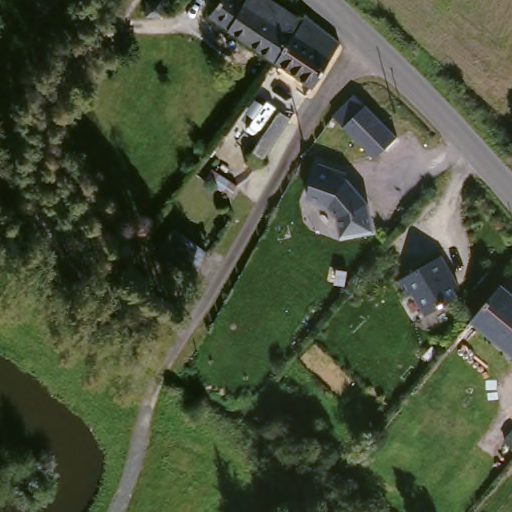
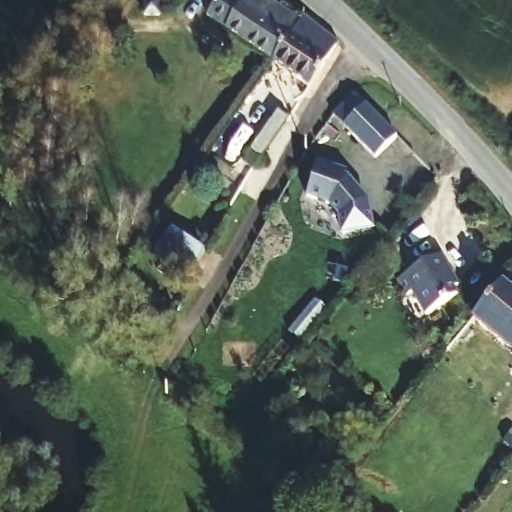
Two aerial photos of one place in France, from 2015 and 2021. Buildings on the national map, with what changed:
unchanged [(137,0),(151,0),(151,14),(137,14),(137,0)]
unchanged [(245,53),(223,38),(224,37),(204,23),(219,0),(222,0),(237,11),(245,0),(255,0),(269,9),(297,28),(270,69),(245,52),(245,53)]
unchanged [(270,69),(297,28),(301,24),(334,50),(310,91),(307,95),(270,69)]
unchanged [(366,106),(396,139),(372,161),(342,127),(366,106)]
unchanged [(240,175),(230,169),(270,108),(280,115),(240,175)]
unchanged [(228,183),(221,194),(195,177),(202,166),(228,183)]
unchanged [(347,174),(347,181),(368,206),(372,232),(338,236),(335,217),(326,207),(302,199),(313,166),(347,174)]
unchanged [(165,236),(197,259),(180,284),(147,260),(165,236)]
unchanged [(440,255),(458,285),(452,289),(457,296),(425,314),(412,291),(406,295),(397,281),(440,255)]
unchanged [(497,282),(512,294),(512,350),(470,313),(497,282)]
unchanged [(511,362),(512,360),(512,363),(511,362)]

